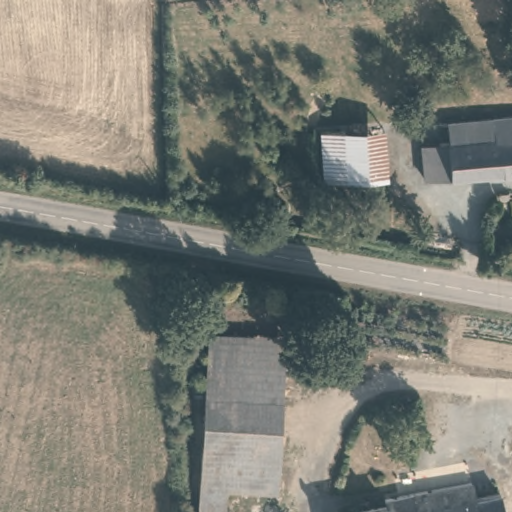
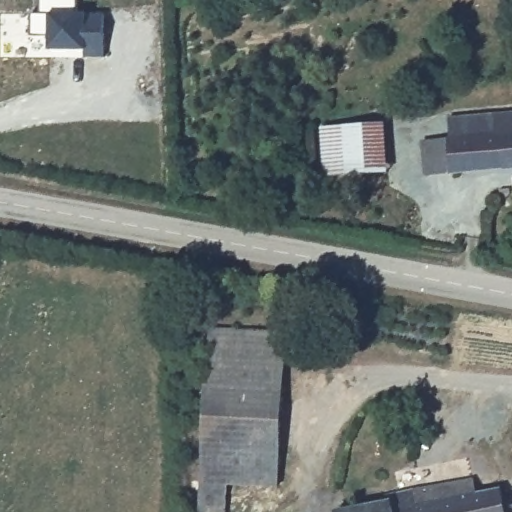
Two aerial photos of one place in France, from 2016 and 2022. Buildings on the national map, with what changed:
new [(81,51),(45,51),(45,35),(27,34),(28,12),(37,12),(38,0),(75,0),(74,13),(102,15),(102,56),(81,56),(81,51)]
unchanged [(411,145),(438,142),(449,141),(447,121),(492,116),(512,114),(512,170),(442,177),(415,180),(411,145)]
unchanged [(329,174),(324,125),(378,121),(383,169),(329,174)]
unchanged [(279,448),(204,442),(211,331),(286,335),(280,426),(279,448)]
unchanged [(277,487),(226,485),(224,512),(200,512),(204,442),(279,448),(277,487)]
unchanged [(387,510),(385,502),(417,496),(412,475),(467,465),(469,475),(496,470),(504,512),(377,512),(387,510)]

